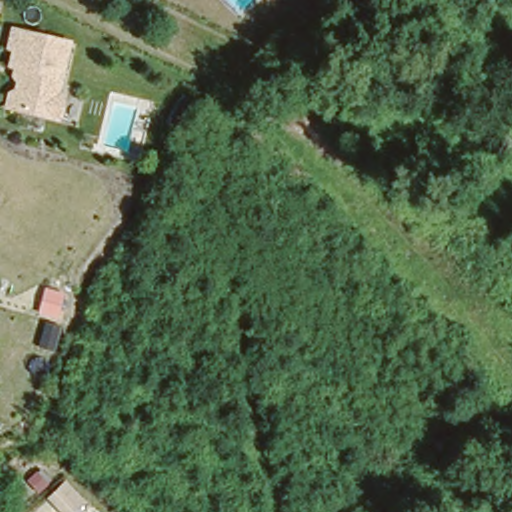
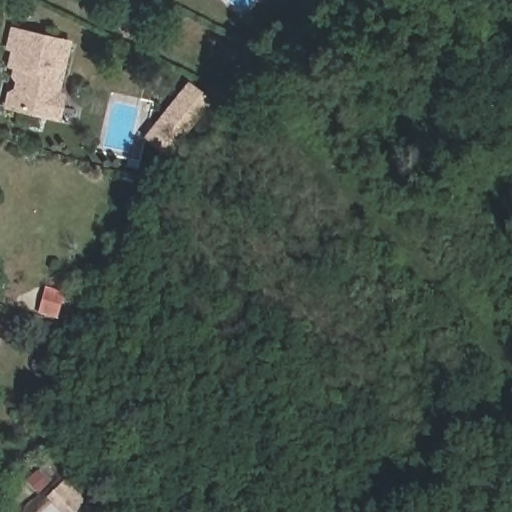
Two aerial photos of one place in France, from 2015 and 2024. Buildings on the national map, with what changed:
unchanged [(63,100),(57,117),(47,115),(12,104),(6,103),(17,66),(11,65),(16,48),(11,47),(16,30),(70,45),(56,95),(63,97),(63,100)]
new [(187,83),(212,102),(166,158),(142,140),(187,83)]

